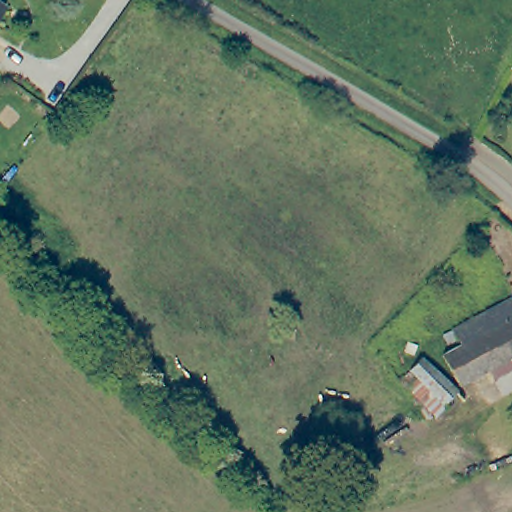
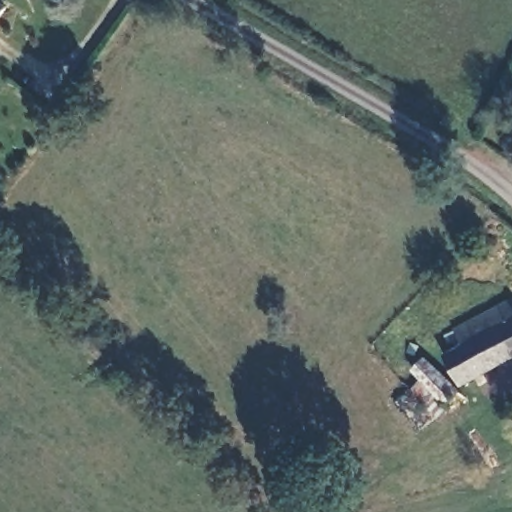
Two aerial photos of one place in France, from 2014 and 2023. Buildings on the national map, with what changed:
unchanged [(0,22),(0,4),(9,11),(0,22)]
unchanged [(510,297),(512,300),(512,355),(460,387),(442,356),(462,343),(455,330),(478,317),(506,300),(510,297)]
unchanged [(453,417),(412,375),(425,362),(467,402),(453,417)]

